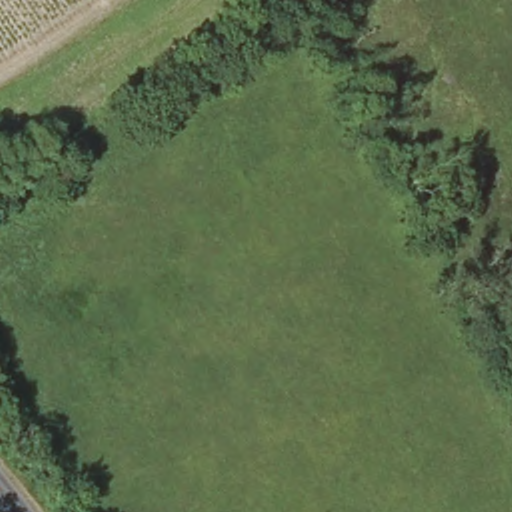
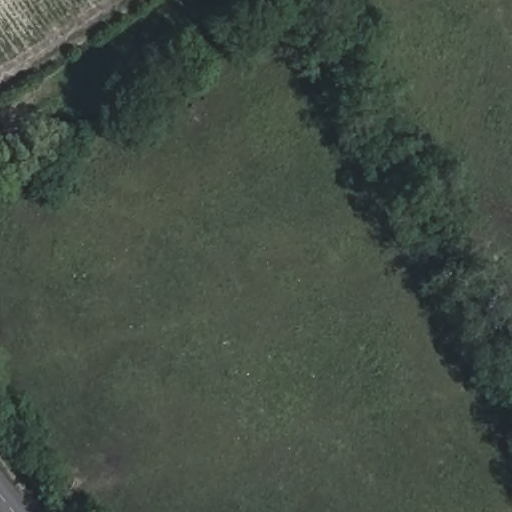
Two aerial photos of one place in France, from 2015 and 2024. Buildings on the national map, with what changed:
[]

